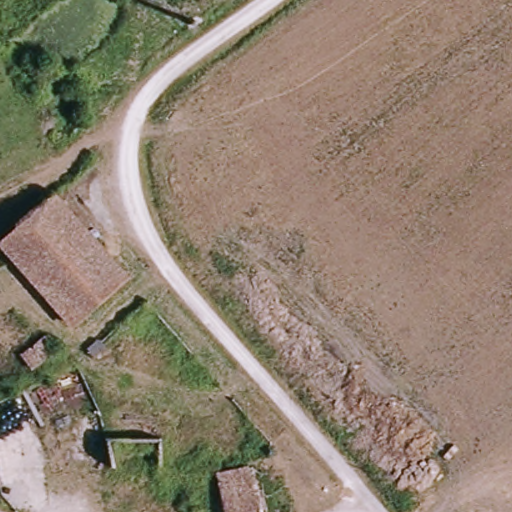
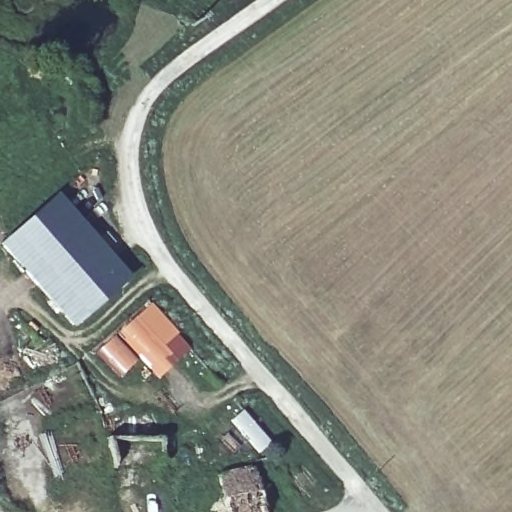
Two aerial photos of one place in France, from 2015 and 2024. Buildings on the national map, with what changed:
unchanged [(52,196),(122,277),(69,323),(0,244),(0,242),(52,196)]
new [(150,301),(190,347),(158,378),(138,358),(121,374),(96,348),(114,332),(150,301)]
unchanged [(55,349),(29,370),(17,356),(42,333),(55,349)]
unchanged [(291,511),(290,512),(265,512),(252,474),(271,467),(291,511)]
unchanged [(252,469),(252,474),(265,512),(212,512),(205,477),(252,469)]

